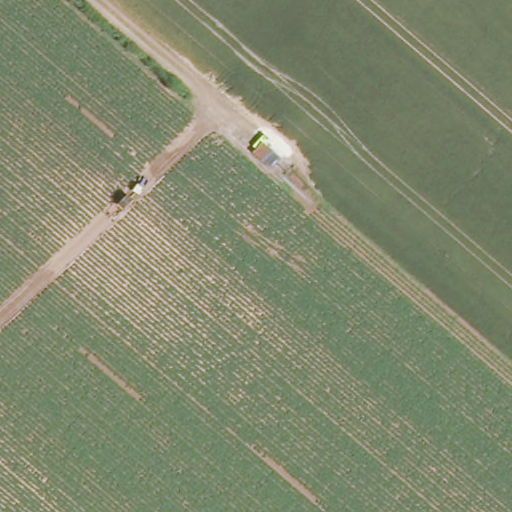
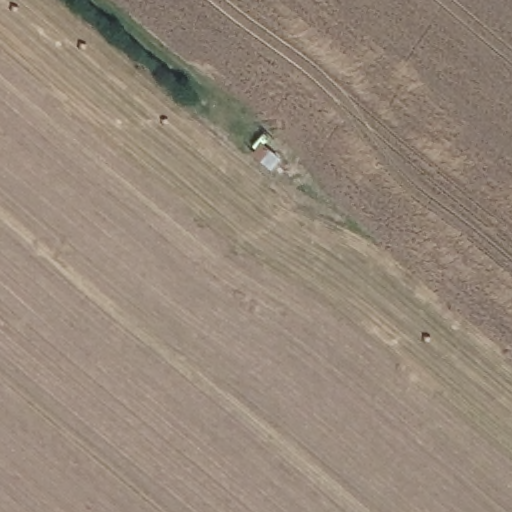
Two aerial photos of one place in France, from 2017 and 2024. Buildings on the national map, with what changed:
unchanged [(284,160),(271,172),(252,157),(267,142),(284,160)]

